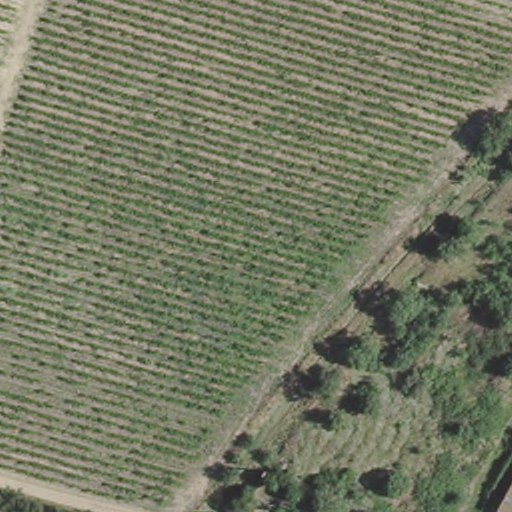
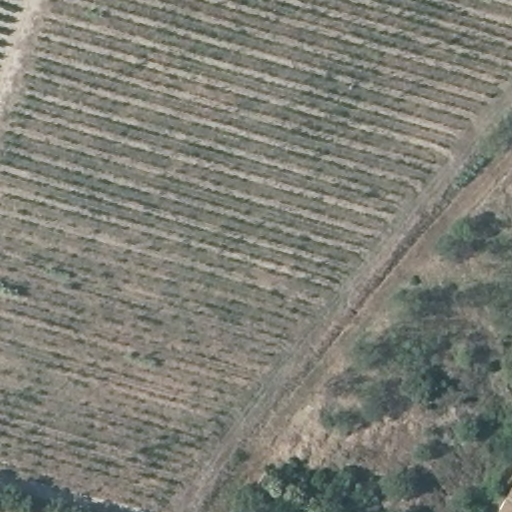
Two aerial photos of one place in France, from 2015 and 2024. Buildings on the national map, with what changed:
unchanged [(512,512),(500,512),(512,490),(512,512)]

